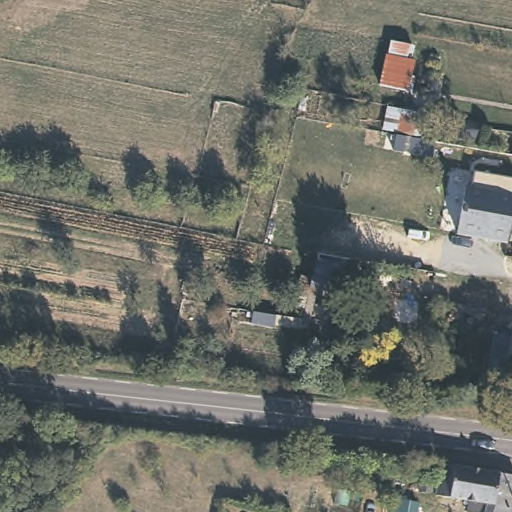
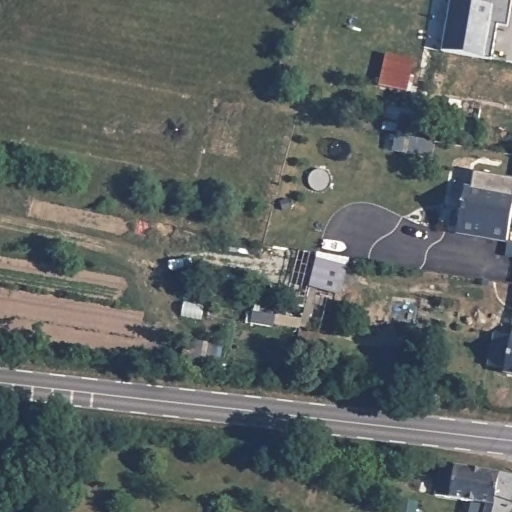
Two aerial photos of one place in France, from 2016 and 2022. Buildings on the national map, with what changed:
new [(497,23),(492,59),(442,51),(450,0),(512,0),(512,1),(508,25),(497,23)]
unchanged [(381,59),(382,60),(386,41),(411,45),(408,78),(412,79),(410,93),(376,86),(381,59)]
unchanged [(383,131),(388,108),(428,115),(425,139),(433,141),(431,160),(397,153),(398,134),(383,131)]
unchanged [(481,125),(477,145),(447,139),(450,119),(481,125)]
unchanged [(456,235),(464,189),(472,190),(476,175),(512,180),(512,225),(510,243),(456,235)]
unchanged [(346,265),(342,282),(337,280),(336,291),(314,288),(310,318),(302,317),(310,260),(346,265)]
unchanged [(502,368),(487,365),(492,334),(510,336),(512,324),(512,376),(503,374),(502,368)]
unchanged [(512,503),(505,512),(484,512),(486,503),(458,499),(432,495),(438,462),(512,471),(512,503)]

